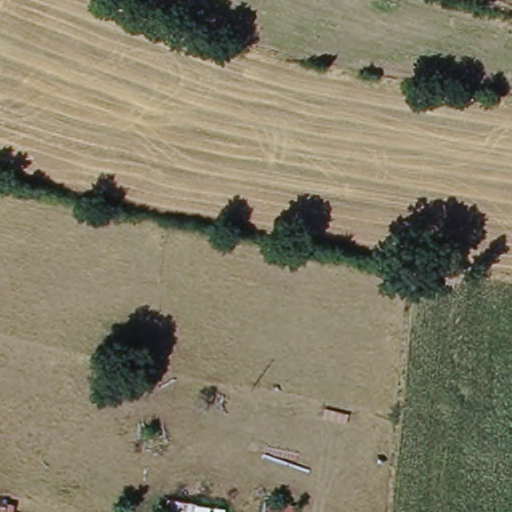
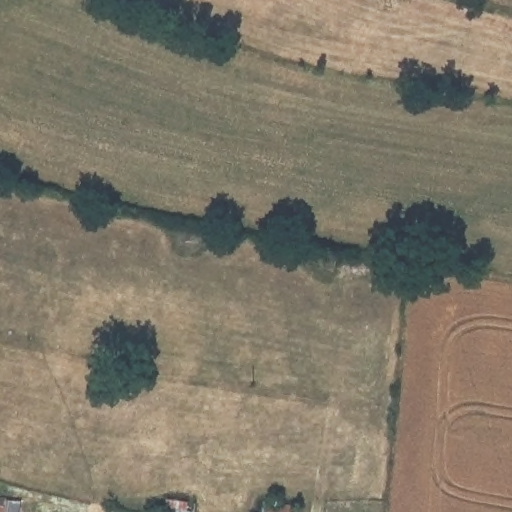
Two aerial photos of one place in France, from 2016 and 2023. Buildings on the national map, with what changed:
unchanged [(2,512),(0,512),(0,500),(4,501),(2,512)]
unchanged [(297,509),(296,512),(265,512),(266,508),(297,509)]

